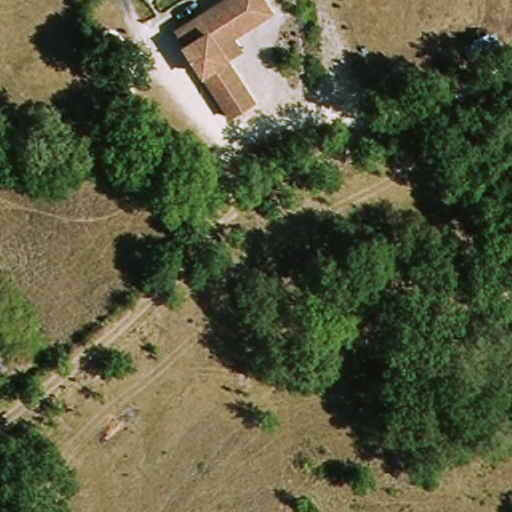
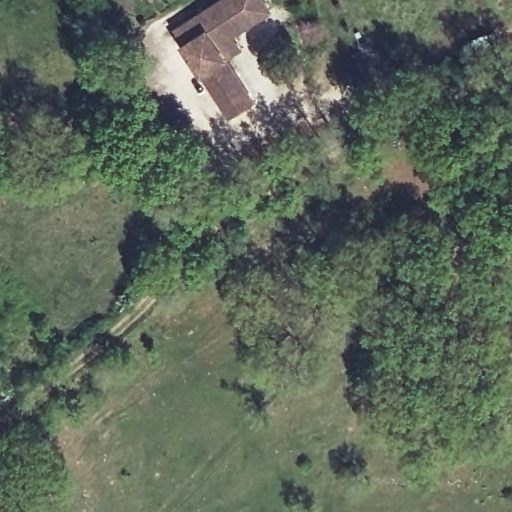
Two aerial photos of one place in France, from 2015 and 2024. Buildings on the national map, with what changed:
unchanged [(261,107),(237,122),(192,47),(183,32),(206,18),(237,0),(273,0),(282,15),(243,38),(251,52),(240,58),(234,61),(261,107)]
unchanged [(423,336),(416,328),(423,321),(431,329),(423,336)]

